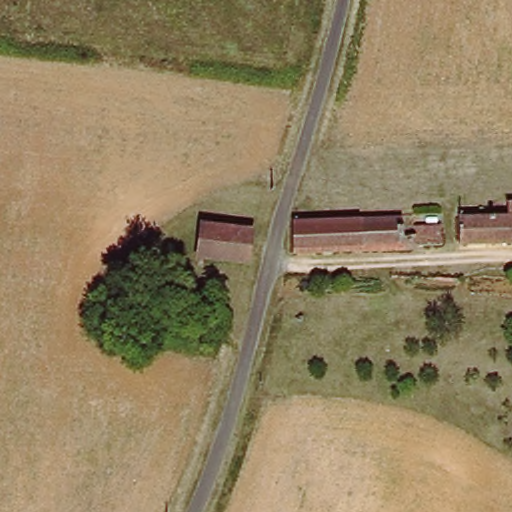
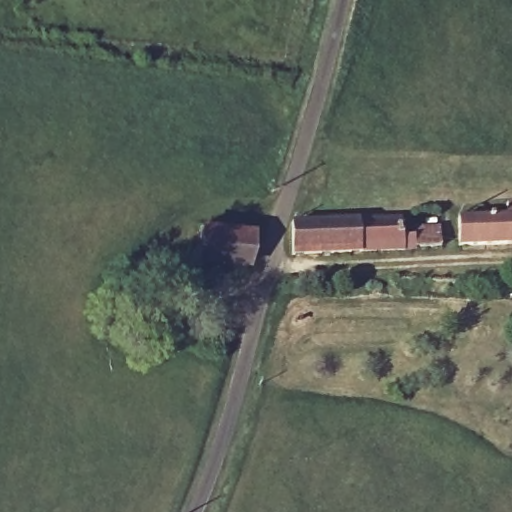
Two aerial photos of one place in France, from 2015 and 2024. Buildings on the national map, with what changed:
unchanged [(463,248),(462,217),(508,216),(508,201),(512,200),(512,247),(463,248)]
unchanged [(390,225),(390,236),(436,234),(435,251),(292,258),(299,222),(390,216),(390,225)]
unchanged [(253,228),(254,262),(200,265),(200,231),(253,228)]

